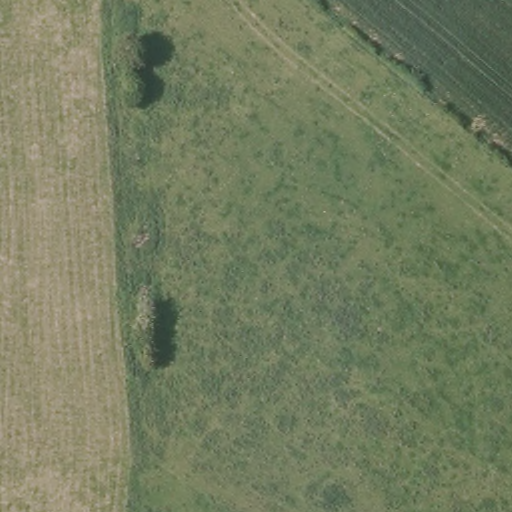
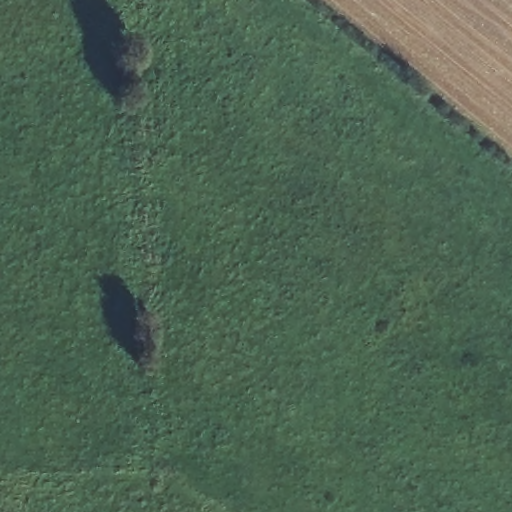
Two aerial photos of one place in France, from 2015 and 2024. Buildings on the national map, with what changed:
[]

